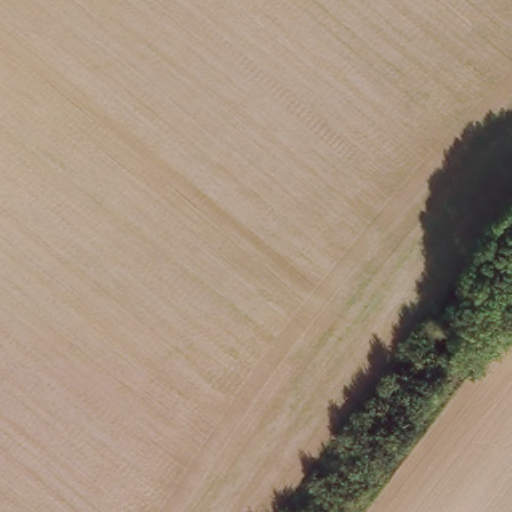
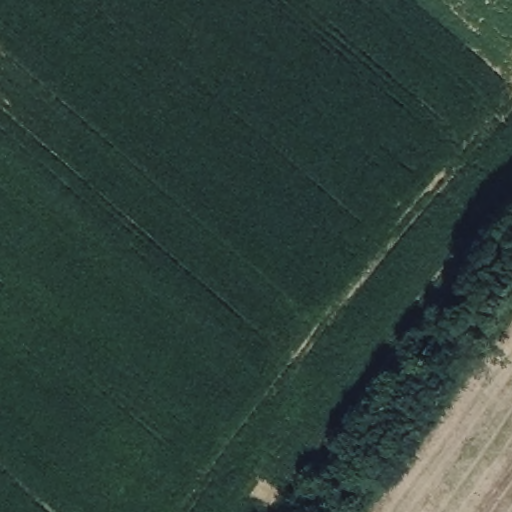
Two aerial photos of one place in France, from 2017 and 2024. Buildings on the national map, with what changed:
[]

